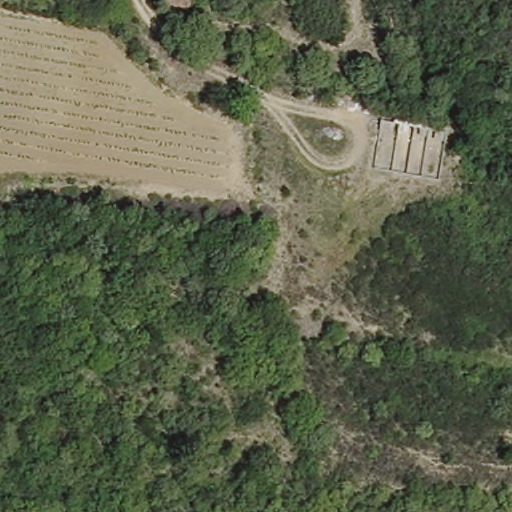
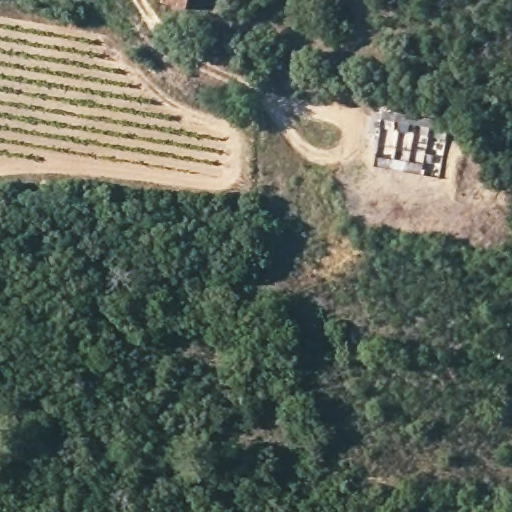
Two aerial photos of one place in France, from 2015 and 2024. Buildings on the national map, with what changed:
unchanged [(196,0),(194,10),(163,3),(164,0),(196,0)]

